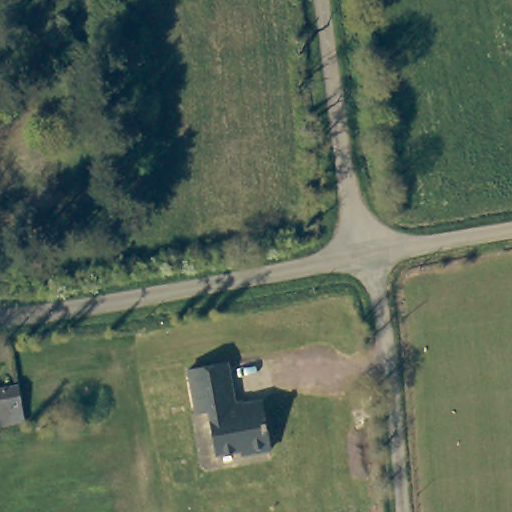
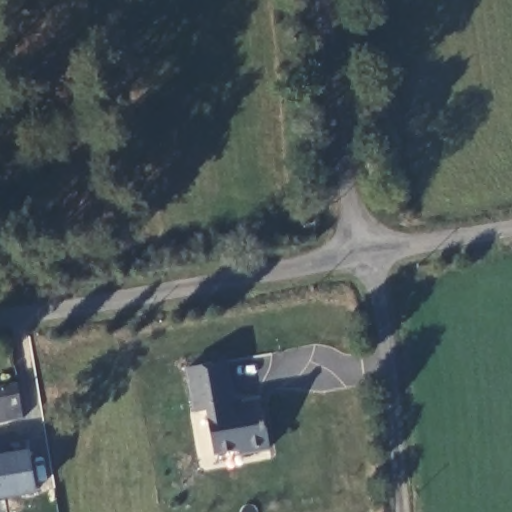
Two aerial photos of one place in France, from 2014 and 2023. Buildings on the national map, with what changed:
unchanged [(231,365),(239,407),(265,402),(273,452),(252,456),(246,452),(221,456),(212,413),(200,415),(192,371),(231,365)]
unchanged [(0,429),(0,390),(13,387),(20,425),(0,429)]
new [(0,500),(0,454),(29,450),(38,494),(0,500)]

